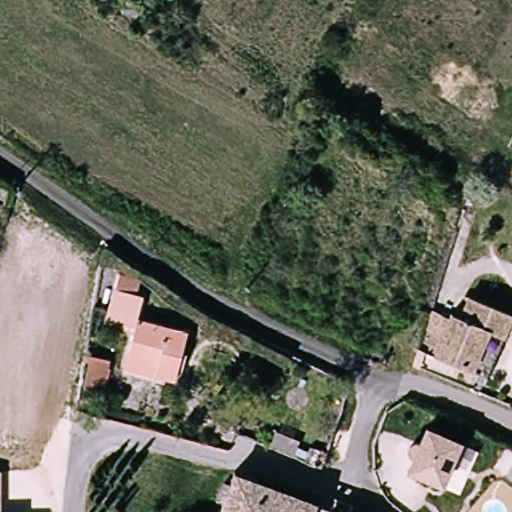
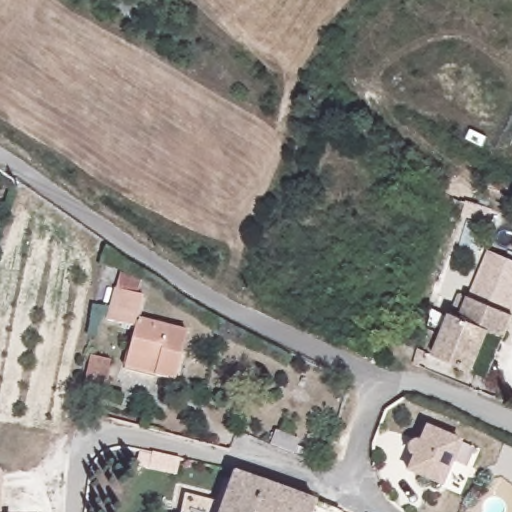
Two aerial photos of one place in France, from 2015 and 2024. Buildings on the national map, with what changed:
new [(469,299),(490,250),(512,260),(512,315),(474,301),(469,299)]
unchanged [(128,354),(133,330),(106,323),(114,293),(119,279),(141,285),(136,300),(141,301),(136,323),(186,337),(173,384),(152,378),(123,370),(128,354)]
unchanged [(430,309),(466,322),(474,301),(512,315),(512,324),(507,337),(489,331),(474,371),(420,351),(430,309)]
unchanged [(110,361),(104,391),(79,387),(85,356),(110,361)]
unchanged [(410,453),(409,451),(408,447),(409,444),(411,441),(414,440),(417,441),(419,442),(426,427),(459,441),(441,484),(407,469),(414,455),(410,453)]
unchanged [(0,472),(1,472),(1,512),(0,512),(0,472)]
unchanged [(259,486),(316,507),(314,512),(222,512),(235,476),(236,473),(259,482),(259,486)]

